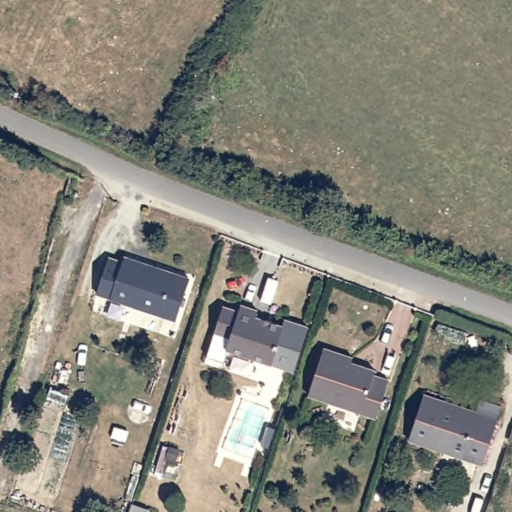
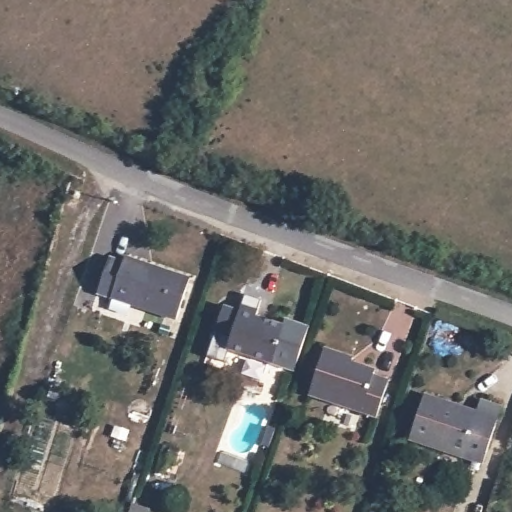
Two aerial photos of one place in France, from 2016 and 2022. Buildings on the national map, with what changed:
unchanged [(123,260),(126,255),(190,278),(178,318),(96,291),(109,254),(123,260)]
unchanged [(297,375),(227,350),(230,341),(213,335),(222,307),(239,313),(242,306),(257,312),(256,319),(285,329),(287,323),(313,331),(297,375)]
unchanged [(379,423),(312,399),(328,353),(354,363),(361,370),(377,376),(375,381),(392,386),(379,423)]
unchanged [(487,468),(413,443),(428,397),(480,414),(482,409),(505,417),(487,468)]
unchanged [(272,432),(280,434),(277,441),(273,453),(267,450),(272,432)]

